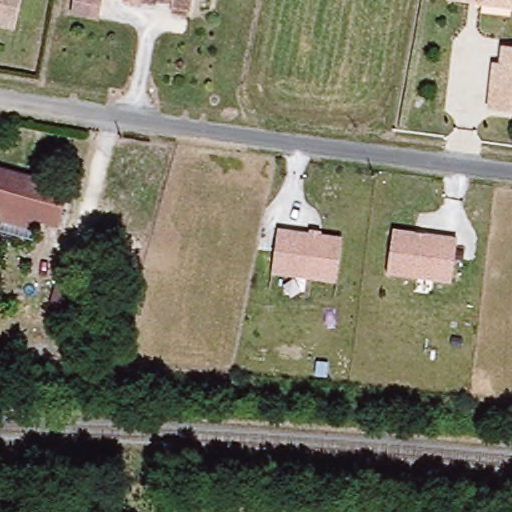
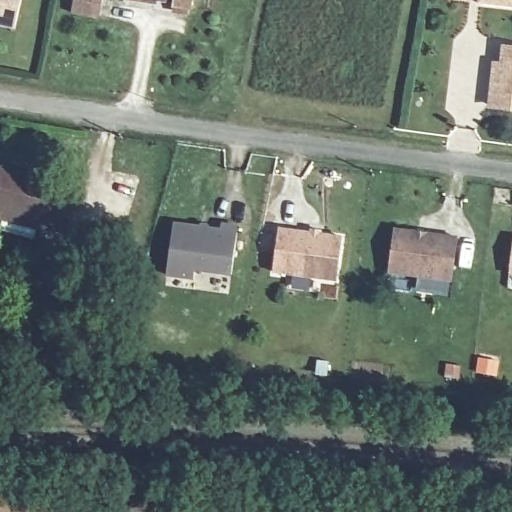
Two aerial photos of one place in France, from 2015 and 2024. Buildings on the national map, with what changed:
unchanged [(0,25),(0,0),(23,0),(19,28),(0,25)]
unchanged [(73,0),(101,0),(98,18),(71,13),(73,0)]
unchanged [(124,0),(190,0),(188,11),(172,8),(172,3),(157,1),(156,6),(123,1),(124,0)]
unchanged [(512,0),(512,13),(478,9),(478,6),(449,3),(448,0),(512,0)]
unchanged [(490,107),(495,65),(502,66),(504,48),(512,49),(512,109),(490,107)]
unchanged [(59,227),(41,222),(36,241),(0,231),(3,219),(0,218),(2,211),(0,210),(0,169),(70,188),(59,227)]
new [(174,224),(222,230),(223,225),(239,227),(233,274),(169,266),(174,224)]
unchanged [(278,229),(343,236),(337,280),(273,271),(278,229)]
unchanged [(396,229),(458,238),(454,280),(390,273),(396,229)]
new [(512,267),(512,276),(511,276),(512,267)]
unchanged [(71,309),(51,303),(60,269),(81,275),(71,309)]

